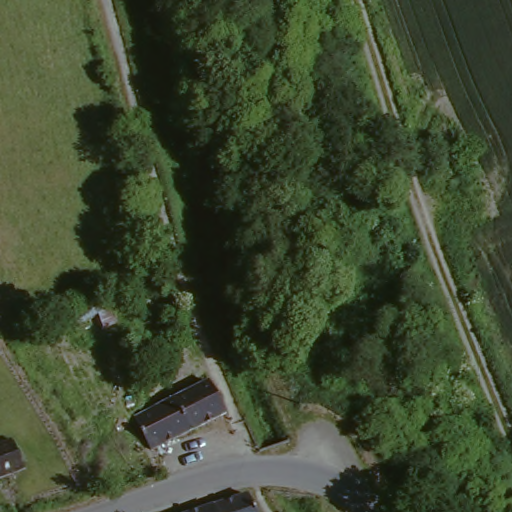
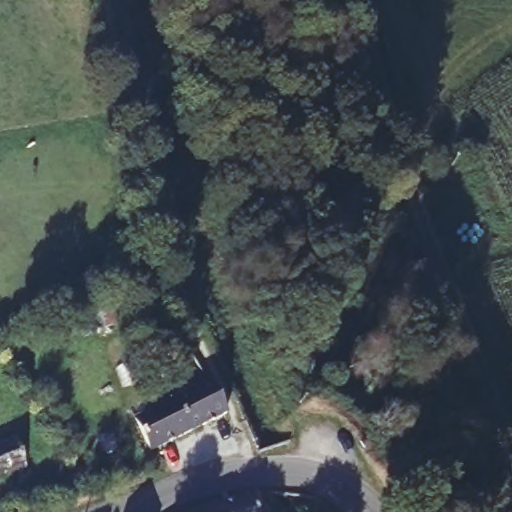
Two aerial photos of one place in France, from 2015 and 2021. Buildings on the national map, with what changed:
unchanged [(202,384),(220,414),(185,434),(167,403),(202,384)]
unchanged [(167,403),(185,434),(149,454),(131,423),(167,403)]
unchanged [(19,436),(32,465),(0,477),(0,444),(19,436)]
unchanged [(265,512),(199,512),(253,495),(265,512)]

